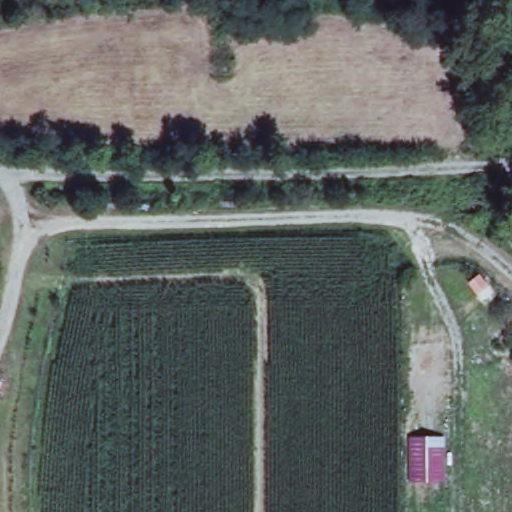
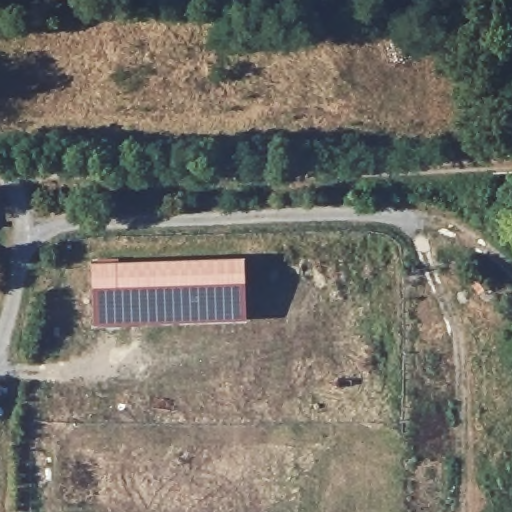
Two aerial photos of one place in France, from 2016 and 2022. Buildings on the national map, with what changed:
new [(244,265),(245,326),(94,330),(92,269),(244,265)]
demolished [(443,375),(405,375),(406,332),(442,331),(443,375)]

